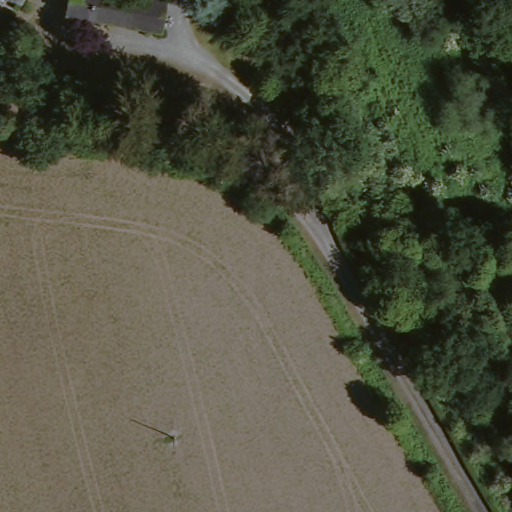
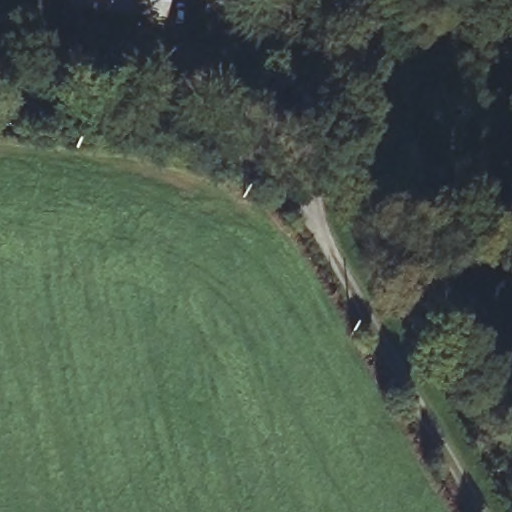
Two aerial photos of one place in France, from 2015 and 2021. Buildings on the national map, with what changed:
unchanged [(68,19),(71,0),(163,0),(159,34),(68,19)]

